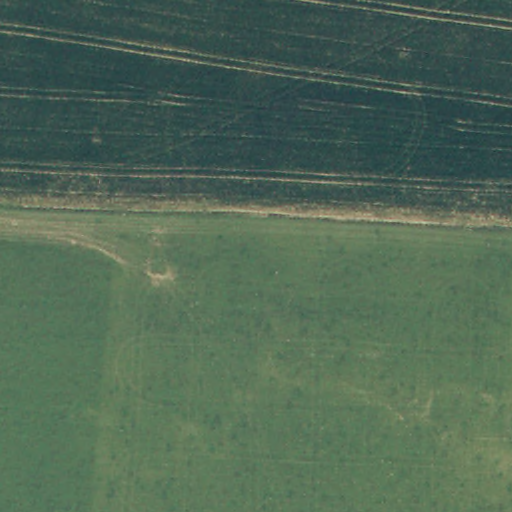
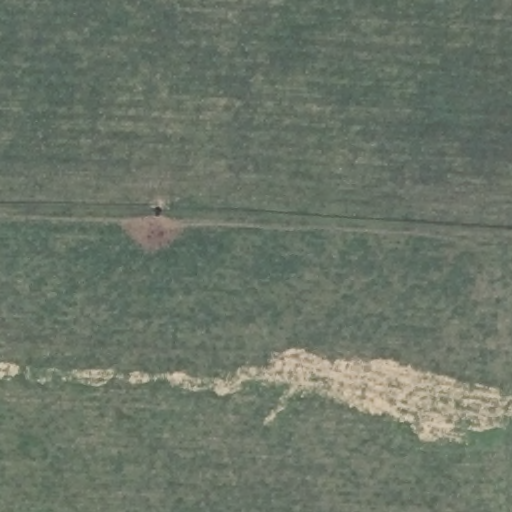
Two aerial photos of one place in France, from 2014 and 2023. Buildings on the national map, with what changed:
[]

